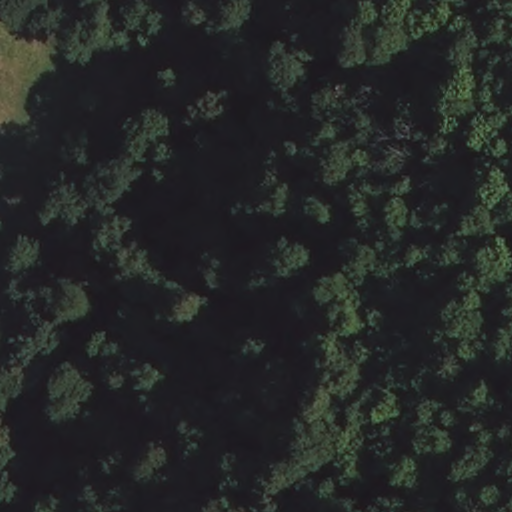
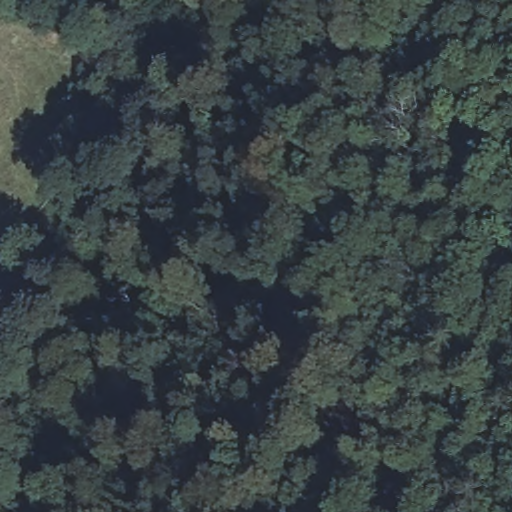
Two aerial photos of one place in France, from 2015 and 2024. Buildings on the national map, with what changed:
[]

